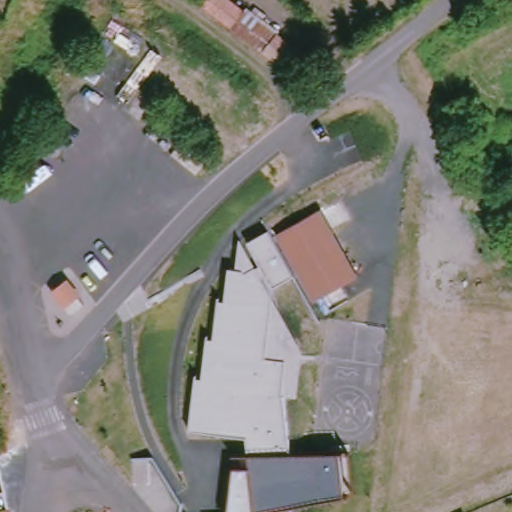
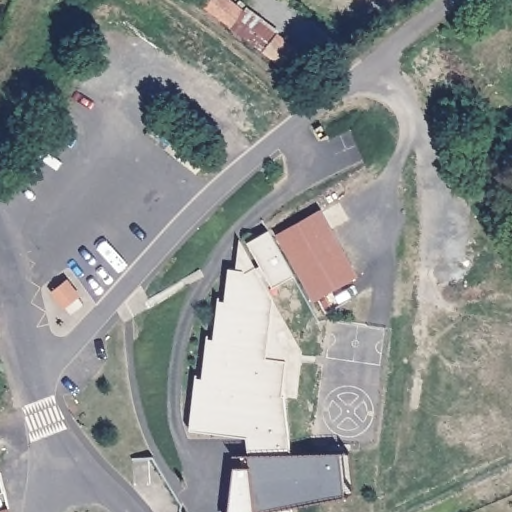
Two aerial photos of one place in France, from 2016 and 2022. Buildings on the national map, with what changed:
unchanged [(203,0),(229,0),(239,10),(243,4),(275,32),(292,47),(273,67),(255,53),(197,7),(203,0)]
unchanged [(197,176),(146,135),(156,121),(209,162),(197,176)]
unchanged [(356,277),(313,301),(274,236),(316,212),(356,277)]
unchanged [(246,455),(245,437),(188,431),(193,378),(201,378),(204,337),(211,338),(216,300),(223,300),(228,269),(234,269),(238,238),(246,242),(266,230),(292,274),(267,289),(271,297),(301,350),(297,394),(281,393),(288,453),(246,455)]
unchanged [(58,296),(70,290),(74,299),(61,306),(58,296)]
unchanged [(289,506),(289,512),(227,512),(233,455),(246,455),(288,453),(339,452),(343,494),(289,506)]
unchanged [(8,512),(0,512),(0,509),(8,507),(8,512)]

